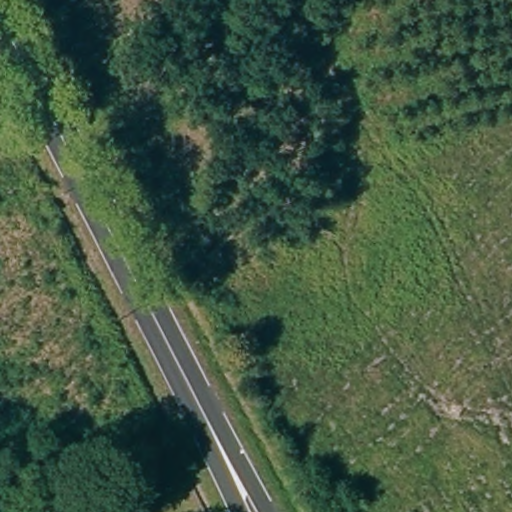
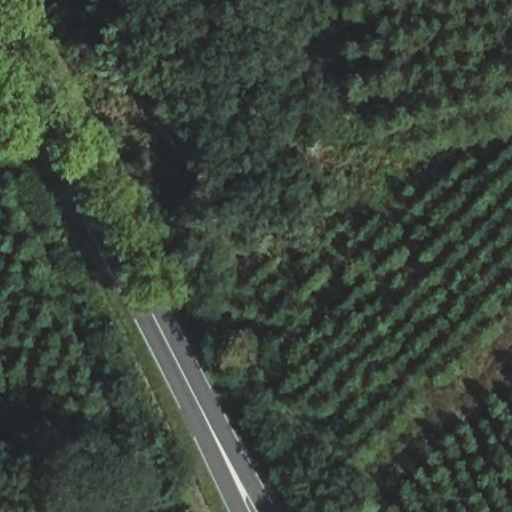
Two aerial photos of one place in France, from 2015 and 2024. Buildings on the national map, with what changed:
[]

